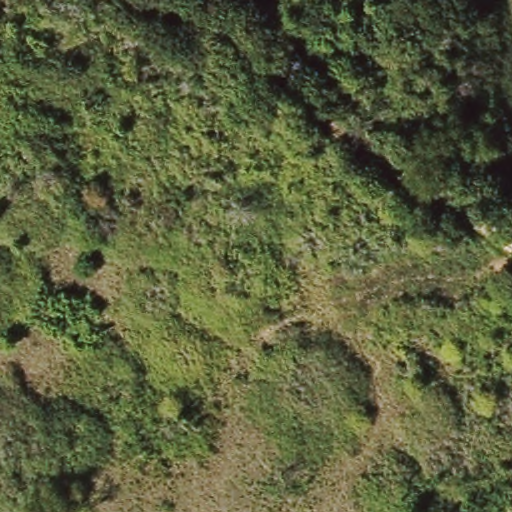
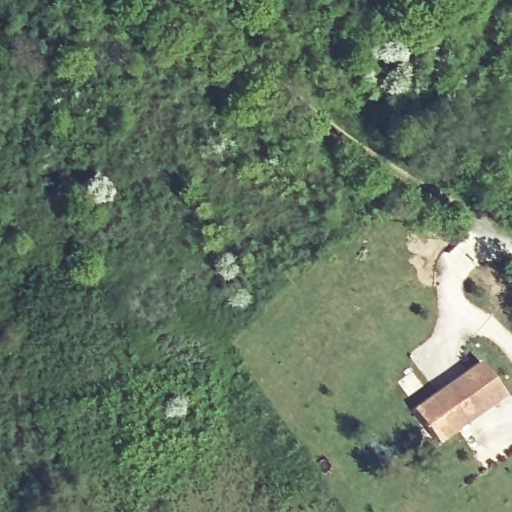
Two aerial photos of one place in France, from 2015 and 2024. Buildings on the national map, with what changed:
new [(413,409),(480,362),(503,396),(437,444),(413,409)]

